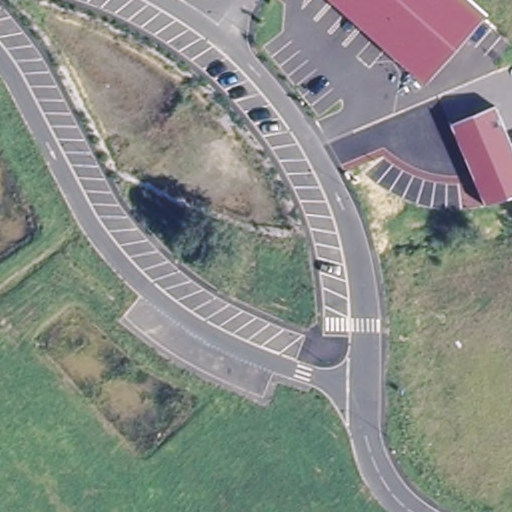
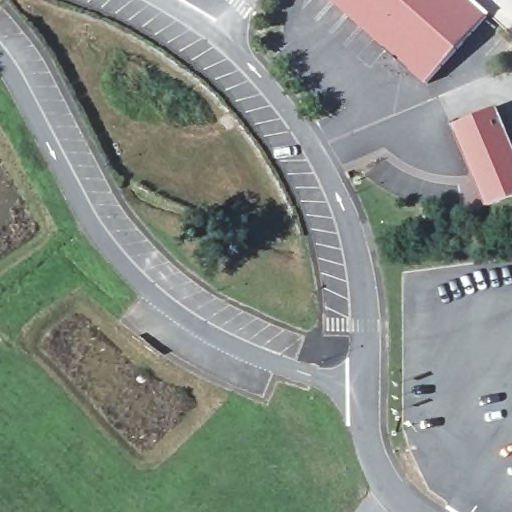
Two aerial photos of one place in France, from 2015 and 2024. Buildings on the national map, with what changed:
unchanged [(488,13),(426,83),(332,0),(473,0),(488,13)]
unchanged [(496,105),(511,142),(512,142),(512,196),(486,204),(452,122),(496,105)]

